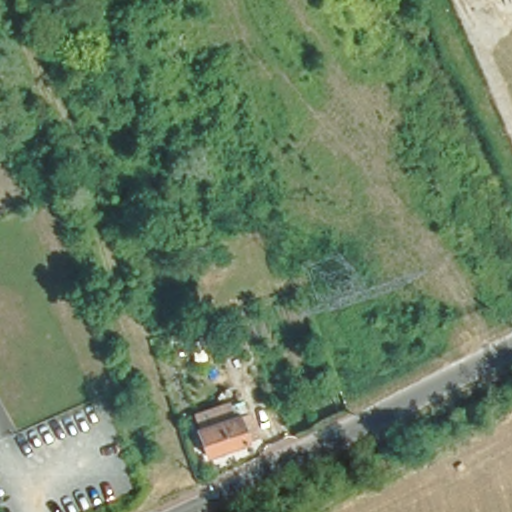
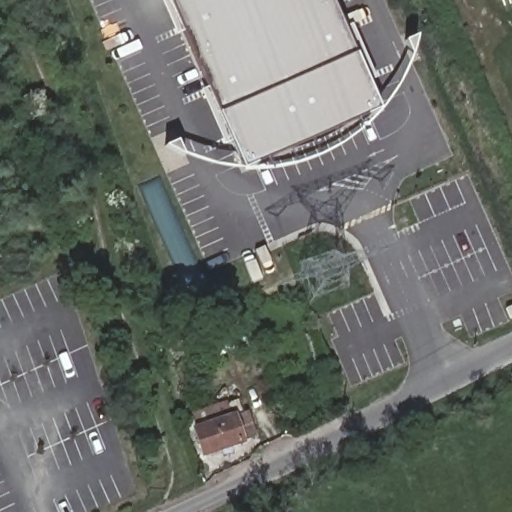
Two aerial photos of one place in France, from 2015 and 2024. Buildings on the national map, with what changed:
new [(246,165),(173,0),(336,0),(382,104),(246,165)]
unchanged [(502,5),(501,0),(512,0),(512,2),(502,5)]
unchanged [(222,313),(234,309),(240,323),(228,328),(236,346),(222,352),(214,334),(187,343),(182,327),(207,319),(209,321),(222,315),(222,313)]
unchanged [(232,419),(244,415),(250,435),(238,438),(240,443),(202,454),(194,425),(197,423),(194,411),(224,402),(227,415),(230,414),(232,419)]

